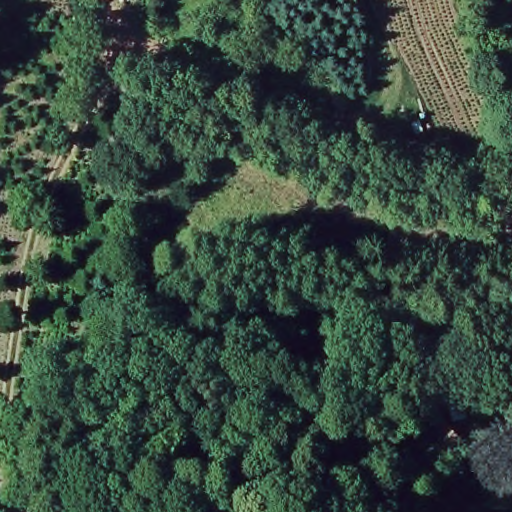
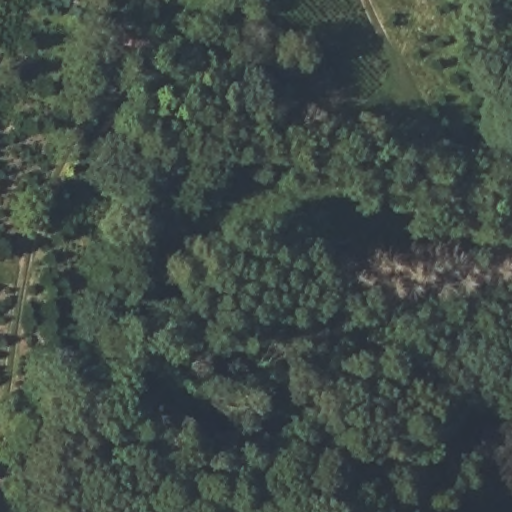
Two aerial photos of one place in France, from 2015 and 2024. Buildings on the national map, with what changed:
unchanged [(399,490),(380,471),(419,434),(437,454),(399,490)]

